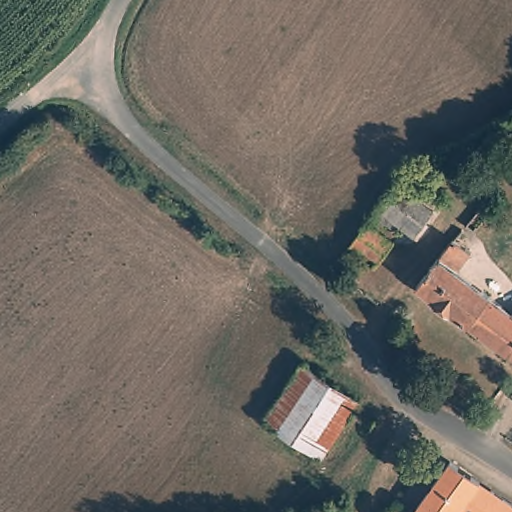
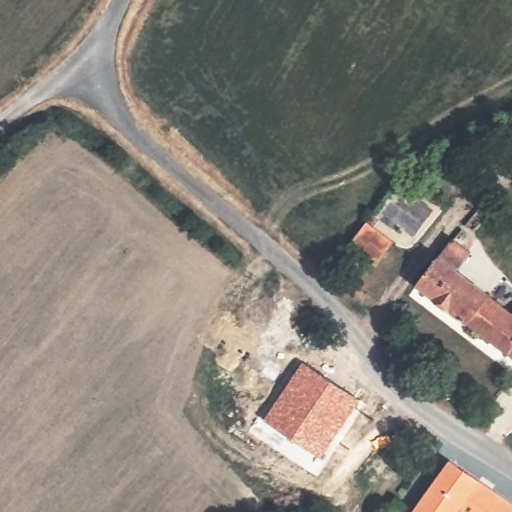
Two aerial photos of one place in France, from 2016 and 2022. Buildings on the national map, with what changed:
unchanged [(435,186),(400,224),(378,206),(412,169),(435,186)]
unchanged [(393,243),(376,266),(351,246),(369,224),(393,243)]
unchanged [(457,266),(486,290),(512,310),(512,358),(416,285),(455,240),(470,251),(457,266)]
unchanged [(363,401),(326,460),(266,421),(303,365),(363,401)]
unchanged [(512,512),(414,512),(455,455),(512,497),(512,512)]

